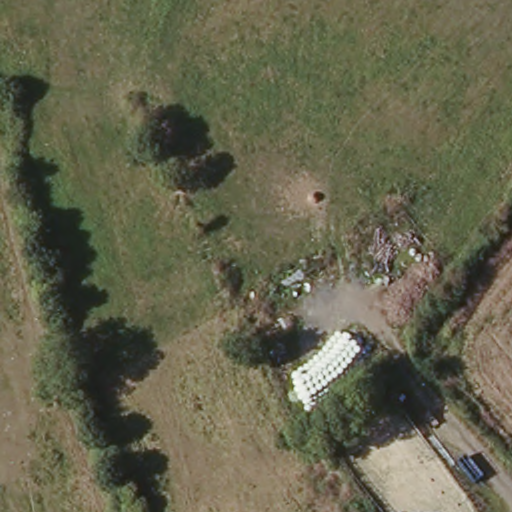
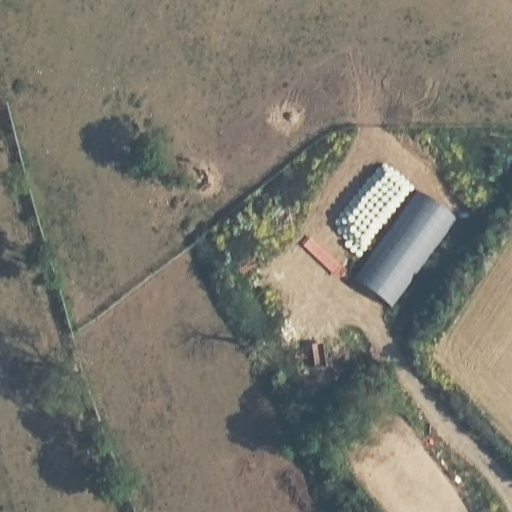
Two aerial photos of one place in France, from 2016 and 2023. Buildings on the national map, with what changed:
new [(457,217),(390,303),(351,275),(416,188),(457,217)]

